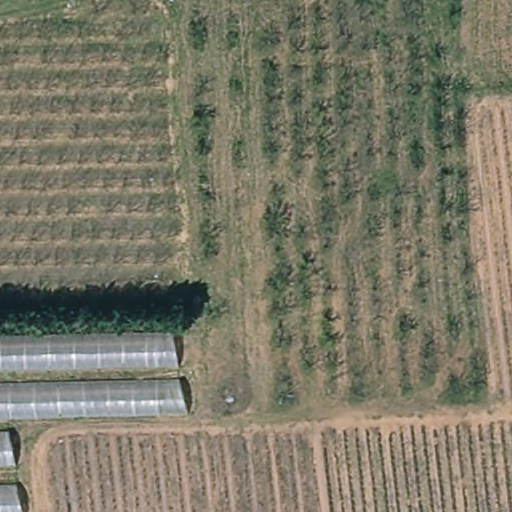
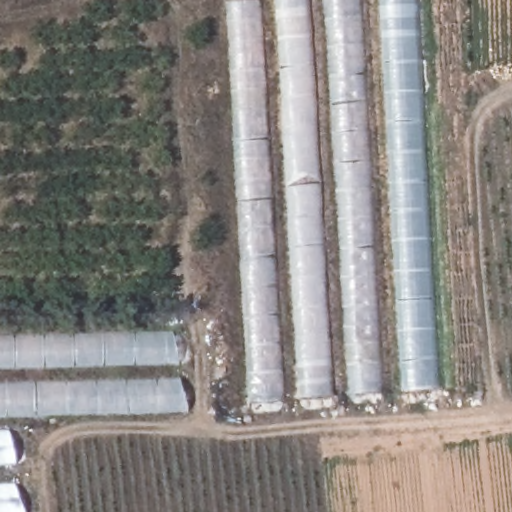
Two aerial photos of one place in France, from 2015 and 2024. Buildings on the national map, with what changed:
new [(327,45),(327,61),(230,67),(225,2),(242,0),(361,0),(364,42),(327,45)]
new [(437,387),(400,389),(379,0),(414,0),(437,387)]
new [(250,405),(230,67),(327,61),(327,45),(364,42),(383,392),(250,405)]
unchanged [(189,410),(10,416),(24,512),(0,512),(0,332),(173,327),(189,410)]

